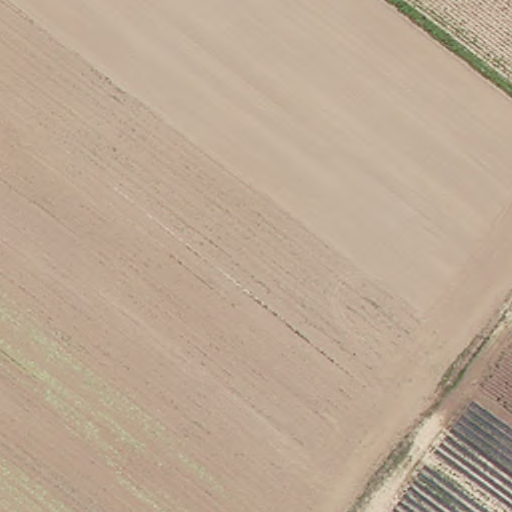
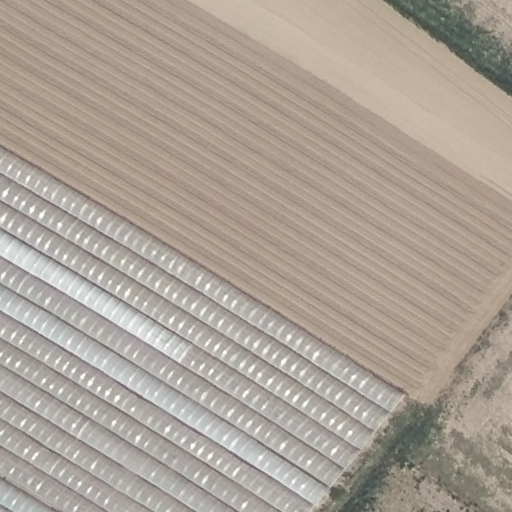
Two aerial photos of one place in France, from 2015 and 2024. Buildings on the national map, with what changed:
new [(408,394),(313,512),(0,512),(0,144),(408,394)]

